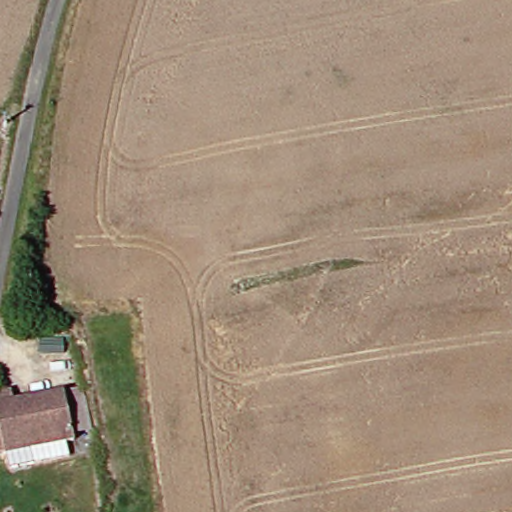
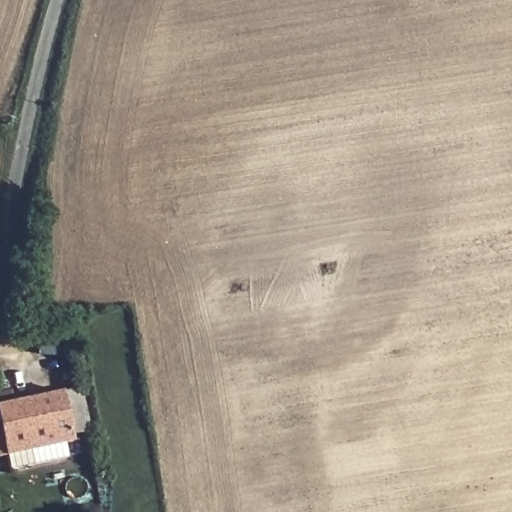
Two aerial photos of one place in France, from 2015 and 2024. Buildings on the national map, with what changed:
unchanged [(0,183),(0,151),(6,152),(0,183)]
unchanged [(50,343),(54,358),(33,362),(30,347),(50,343)]
unchanged [(7,405),(11,404),(9,394),(20,391),(23,400),(74,387),(74,389),(90,385),(100,422),(83,427),(85,435),(77,437),(82,451),(46,461),(42,446),(5,456),(0,439),(0,427),(12,423),(7,405)]

